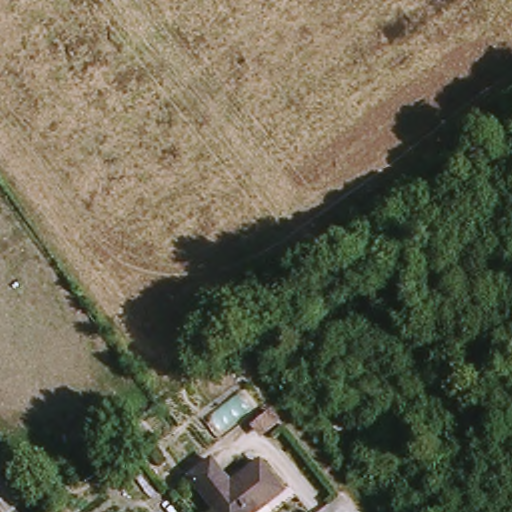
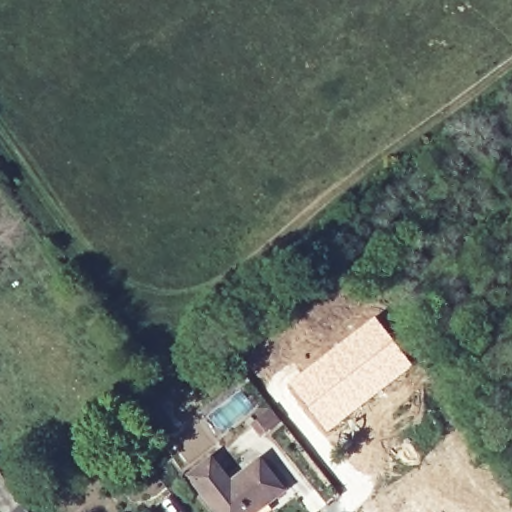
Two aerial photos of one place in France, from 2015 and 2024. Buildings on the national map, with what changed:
new [(374,315),(413,365),(326,432),(287,383),(374,315)]
unchanged [(267,442),(258,430),(271,419),(281,431),(267,442)]
unchanged [(236,481),(259,463),(282,491),(255,512),(223,512),(195,477),(218,457),(236,481)]

